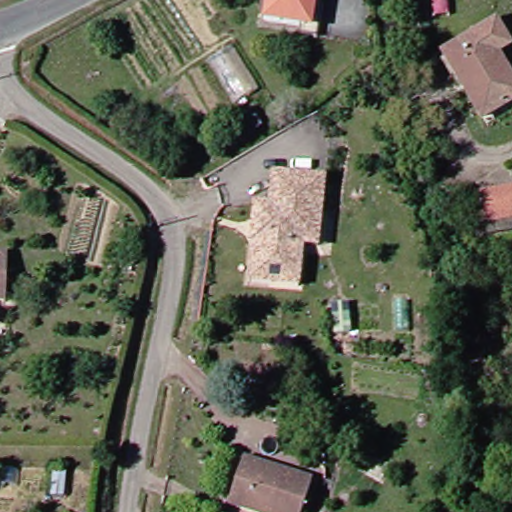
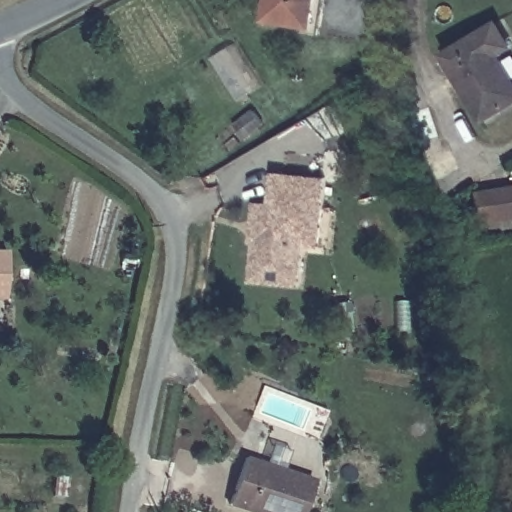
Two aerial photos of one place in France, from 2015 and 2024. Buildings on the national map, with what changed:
unchanged [(325,33),(310,31),(310,24),(271,21),(273,0),(327,0),(325,33)]
unchanged [(512,52),(504,57),(512,70),(512,107),(487,122),(450,56),(500,25),(512,44),(512,52)]
unchanged [(239,103),(249,119),(228,134),(217,119),(239,103)]
unchanged [(304,242),(295,282),(246,272),(254,234),(251,233),(259,194),(267,195),(274,196),(280,166),(332,177),(326,209),(318,245),(304,242)]
unchanged [(512,199),(512,228),(481,232),(477,203),(512,199)]
unchanged [(12,255),(10,296),(0,296),(0,255),(12,255)]
unchanged [(253,457),(317,482),(308,512),(259,512),(236,503),(253,457)]

